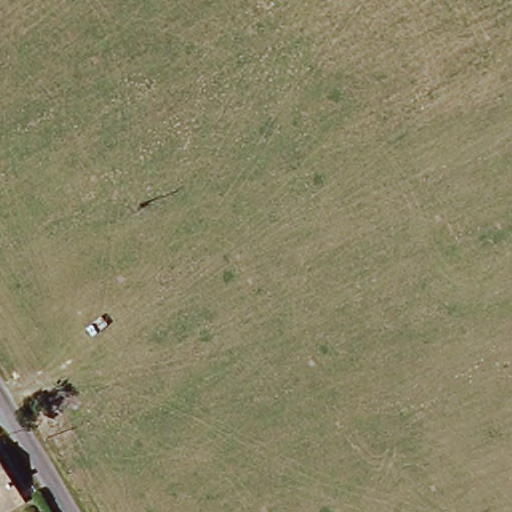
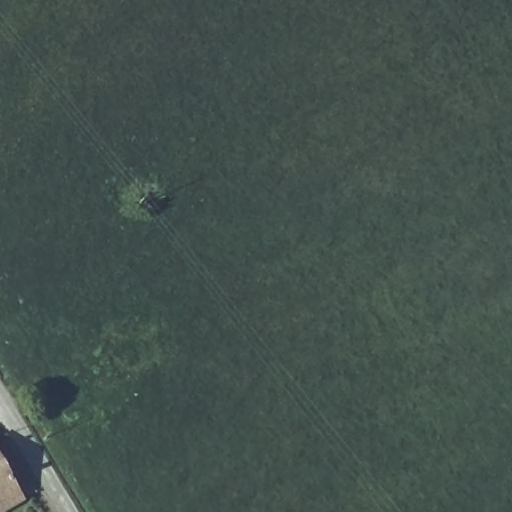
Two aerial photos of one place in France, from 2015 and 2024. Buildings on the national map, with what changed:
unchanged [(9,489),(0,494),(0,473),(9,489)]
unchanged [(6,512),(0,512),(0,494),(9,489),(18,506),(6,512)]

